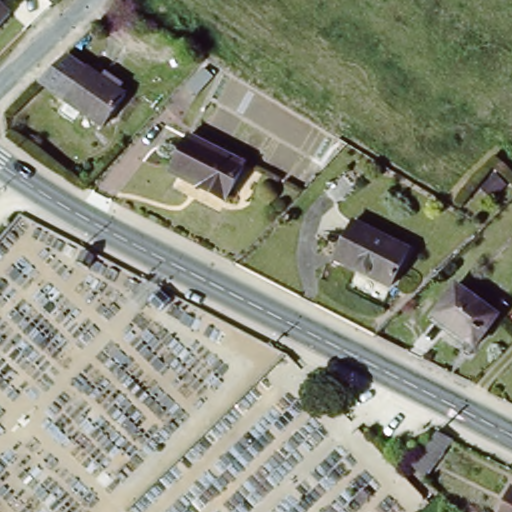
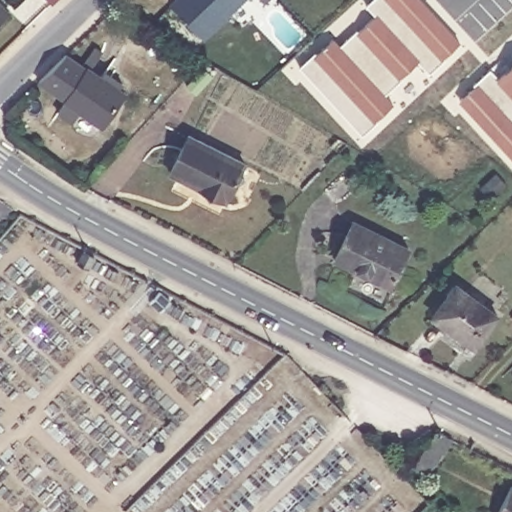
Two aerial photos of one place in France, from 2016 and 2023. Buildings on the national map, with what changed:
unchanged [(43,0),(59,0),(51,8),(43,0)]
new [(174,0),(247,0),(207,39),(170,3),(174,0)]
new [(315,51),(318,55),(332,40),(338,46),(357,29),(361,33),(376,18),(365,6),(372,0),(419,0),(458,42),(444,56),(445,60),(428,76),(418,64),(385,96),(393,106),(362,135),(300,66),(315,51)]
unchanged [(9,21),(0,30),(0,12),(9,21)]
new [(65,105),(39,81),(67,56),(90,72),(65,105)]
new [(472,85),(490,68),(498,78),(512,66),(512,158),(457,101),(475,88),(472,85)]
unchanged [(125,98),(102,131),(73,110),(65,105),(90,72),(102,81),(125,98)]
unchanged [(170,175),(190,138),(212,150),(245,168),(225,204),(183,182),(170,175)]
unchanged [(393,289),(338,260),(353,233),(358,224),(412,252),(407,263),(393,289)]
unchanged [(433,314),(453,286),(462,291),(486,309),(499,318),(478,347),(460,334),(436,316),(433,314)]
unchanged [(442,436),(460,445),(431,485),(417,472),(442,436)]
unchanged [(512,512),(504,512),(512,496),(512,512)]

